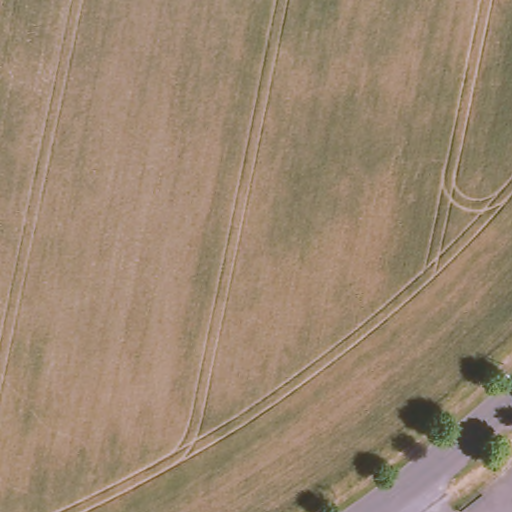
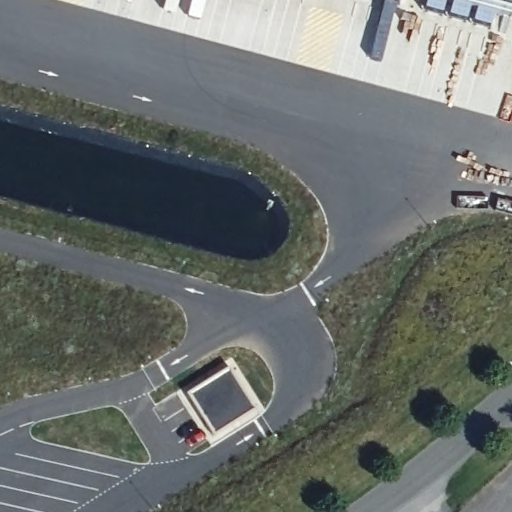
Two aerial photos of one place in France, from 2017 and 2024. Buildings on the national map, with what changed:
new [(512,0),(512,26),(418,0),(512,0)]
new [(251,412),(213,434),(191,395),(229,373),(251,412)]

